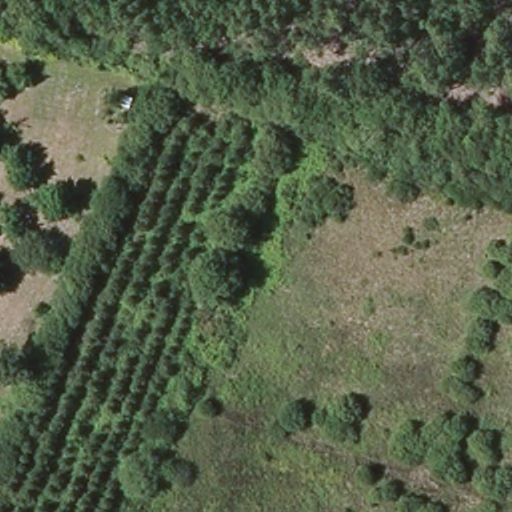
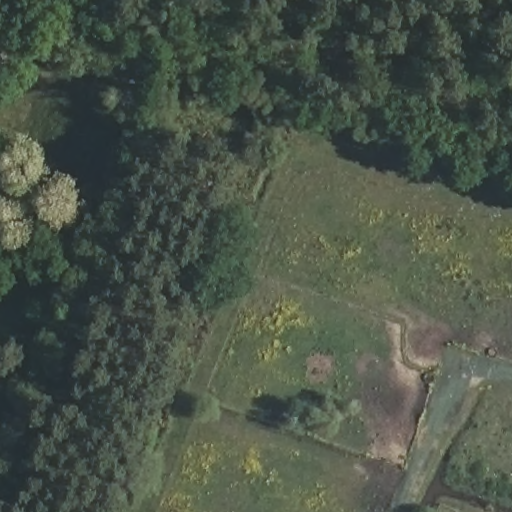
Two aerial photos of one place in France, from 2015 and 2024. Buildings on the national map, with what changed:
unchanged [(116,109),(119,98),(132,103),(127,112),(116,109)]

